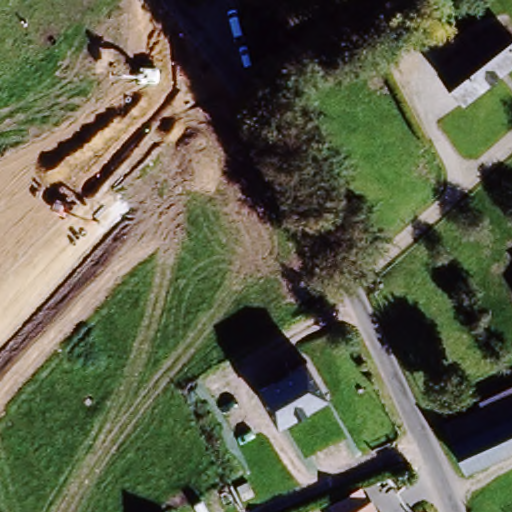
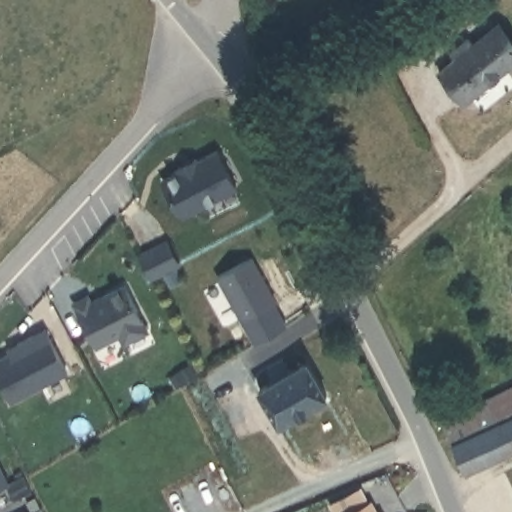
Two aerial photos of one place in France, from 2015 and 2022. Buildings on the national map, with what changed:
unchanged [(366,33),(375,28),(373,25),(408,6),(419,26),(384,45),(375,50),(366,33)]
unchanged [(443,71),(459,58),(455,52),(473,37),(478,44),(502,25),(512,36),(512,67),(467,101),(443,71)]
new [(177,166),(194,157),(195,160),(216,150),(235,185),(185,212),(178,210),(161,179),(179,170),(177,166)]
new [(166,240),(179,265),(152,280),(139,255),(166,240)]
new [(250,256),(273,297),(240,316),(216,275),(250,256)]
new [(87,297),(90,304),(124,287),(144,329),(141,335),(126,342),(120,340),(118,336),(95,348),(73,304),(87,297)]
new [(6,348),(16,343),(44,329),(66,371),(10,401),(0,381),(0,358),(9,353),(6,348)]
unchanged [(267,413),(272,411),(259,388),(274,380),(267,368),(282,359),(290,370),(306,360),(327,395),(279,423),(276,417),(271,420),(267,413)]
unchanged [(445,424),(476,409),(475,405),(512,387),(512,450),(466,471),(445,424)]
new [(7,482),(0,486),(0,468),(7,482)]
unchanged [(379,512),(357,512),(374,503),(379,512)]

